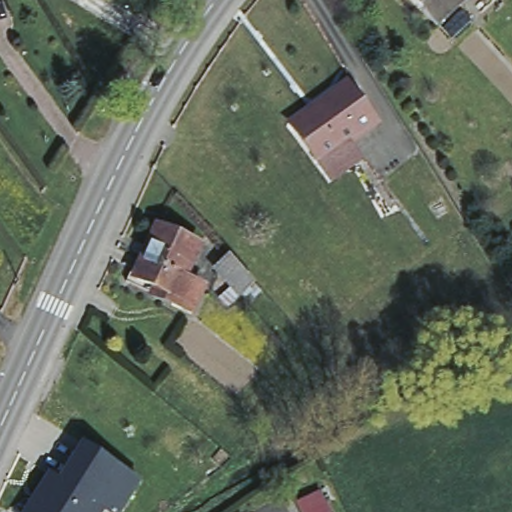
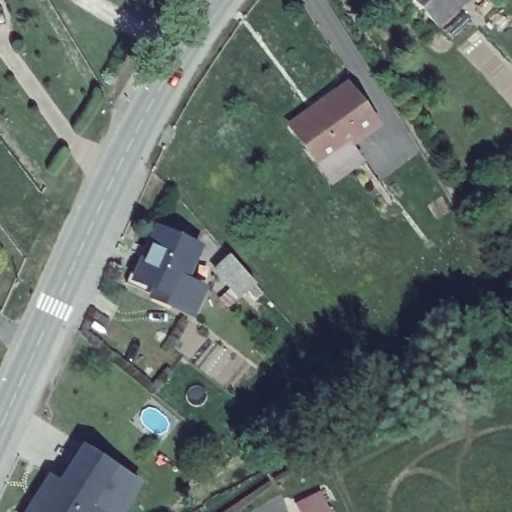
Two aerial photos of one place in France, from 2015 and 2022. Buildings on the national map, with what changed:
unchanged [(422,13),(424,12),(413,0),(466,0),(435,28),(422,13)]
unchanged [(378,129),(321,170),(296,136),(292,129),(321,109),(349,88),(378,129)]
unchanged [(196,310),(176,301),(180,294),(136,274),(133,279),(131,278),(146,242),(151,244),(161,223),(203,242),(188,276),(208,285),(196,310)]
unchanged [(230,257),(254,284),(240,297),(215,270),(230,257)]
unchanged [(58,479),(84,440),(138,476),(115,510),(118,512),(107,512),(99,507),(97,512),(24,512),(49,473),(58,479)]
unchanged [(294,503),(321,491),(326,504),(329,512),(298,512),(294,503)]

